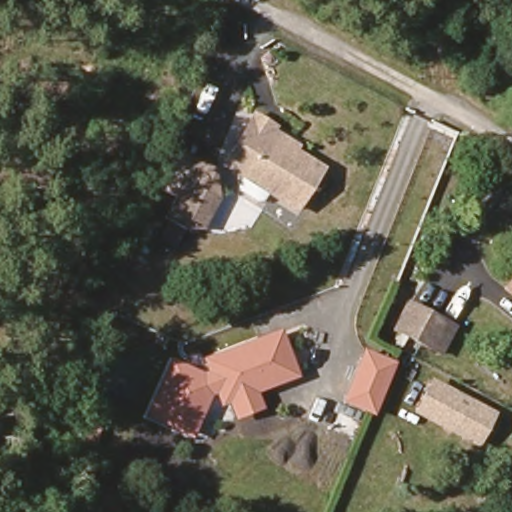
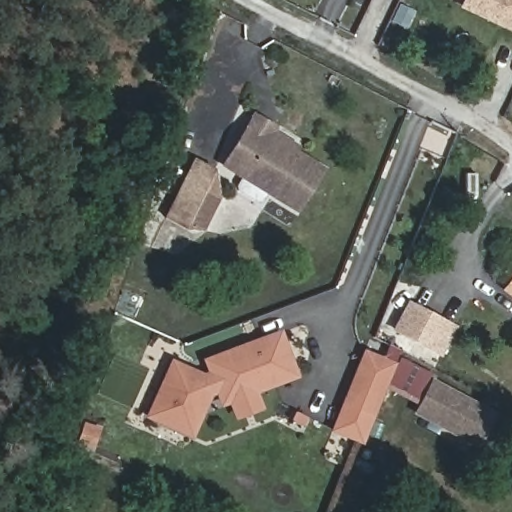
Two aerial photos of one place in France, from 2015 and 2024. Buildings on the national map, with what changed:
new [(462,0),(512,0),(512,33),(458,7),(462,0)]
unchanged [(257,202),(238,190),(237,186),(243,176),(223,164),(253,114),(273,126),(270,131),(295,146),(292,150),(322,167),(297,208),(267,191),(262,201),(257,202)]
unchanged [(181,155),(219,175),(224,204),(209,234),(186,232),(211,184),(190,173),(189,176),(174,169),(181,155)]
unchanged [(172,198),(161,193),(174,169),(189,176),(190,173),(211,184),(186,232),(183,231),(167,222),(167,221),(162,218),(172,198)]
unchanged [(174,248),(161,242),(169,225),(182,232),(174,248)]
unchanged [(512,280),(512,294),(505,289),(512,280)]
unchanged [(440,354),(394,331),(409,303),(454,327),(440,354)]
unchanged [(288,374),(249,389),(254,408),(233,416),(227,397),(219,400),(216,388),(204,394),(189,434),(147,416),(171,367),(200,380),(211,375),(207,361),(276,334),(288,374)]
unchanged [(362,442),(330,429),(362,349),(395,362),(362,442)]
unchanged [(497,413),(478,448),(412,413),(430,378),(497,413)]

